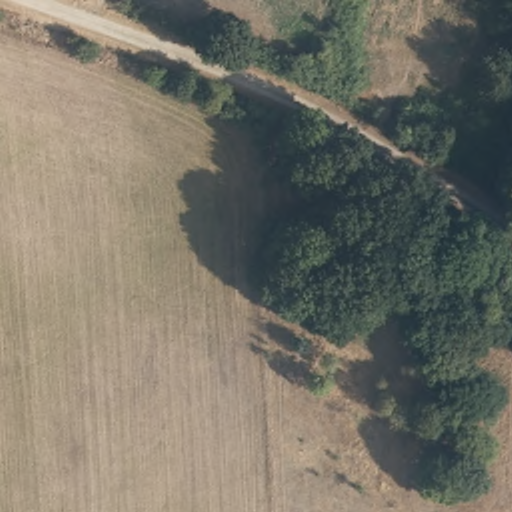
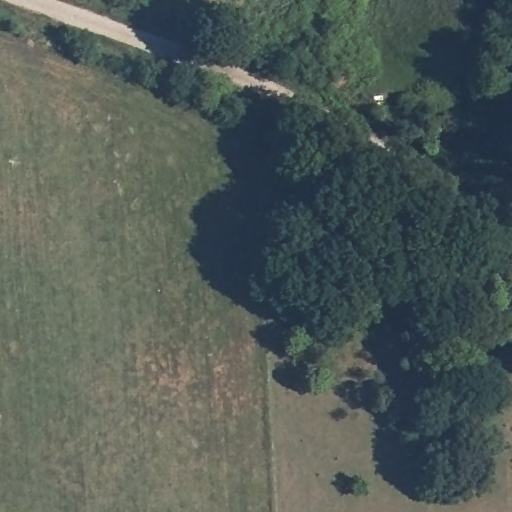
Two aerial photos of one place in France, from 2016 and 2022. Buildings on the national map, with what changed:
[]

